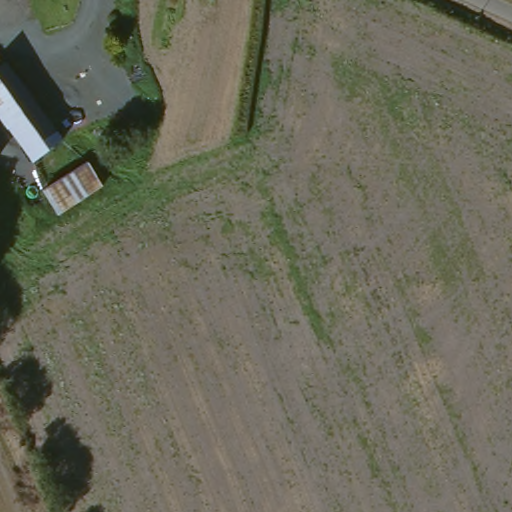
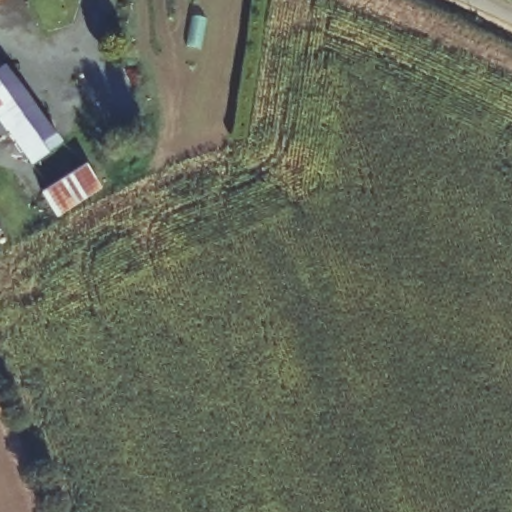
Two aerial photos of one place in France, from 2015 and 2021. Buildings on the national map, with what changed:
unchanged [(32,169),(0,128),(0,74),(60,149),(32,169)]
unchanged [(37,197),(77,173),(80,176),(90,197),(50,222),(37,197)]

